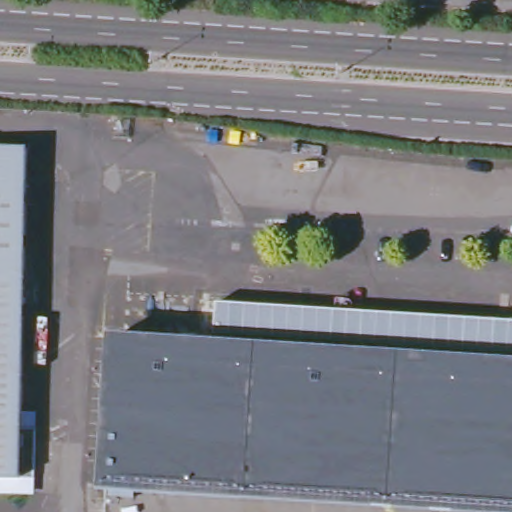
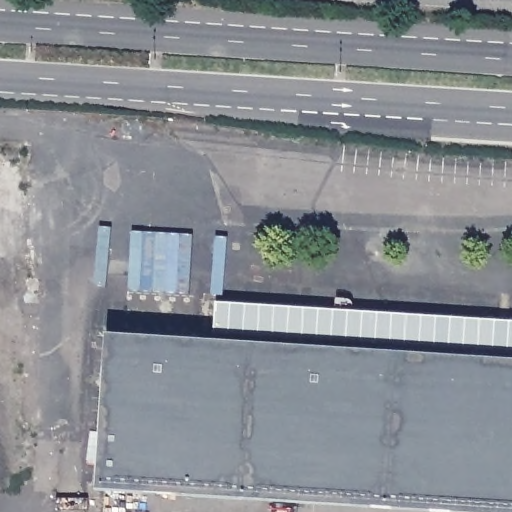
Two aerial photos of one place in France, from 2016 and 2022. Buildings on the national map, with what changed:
demolished [(20,416),(20,431),(34,432),(33,483),(18,482),(18,498),(0,497),(0,151),(25,151),(20,416)]
unchanged [(400,512),(103,492),(117,296),(210,302),(209,317),(512,337),(512,512),(400,512)]

